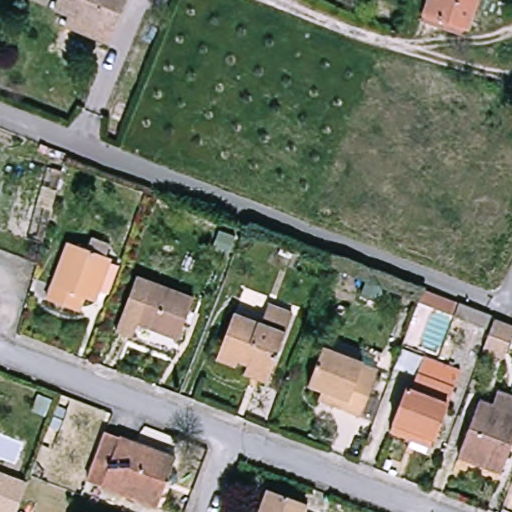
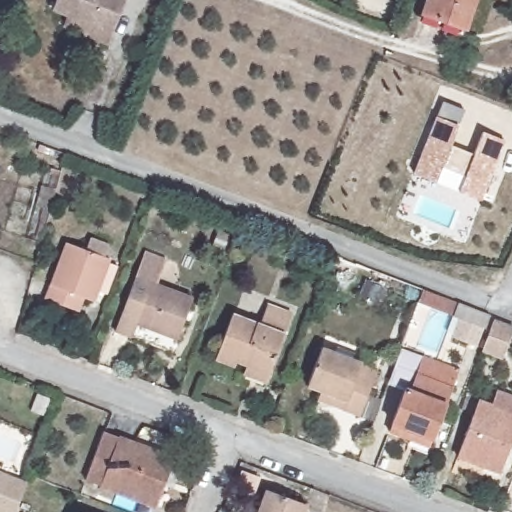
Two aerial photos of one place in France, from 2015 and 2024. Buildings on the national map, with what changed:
unchanged [(62,20),(47,14),(52,0),(121,0),(107,37),(102,50),(58,32),(62,20)]
unchanged [(415,15),(421,0),(472,0),(458,32),(415,15)]
new [(434,119),(455,127),(447,147),(470,156),(480,134),(501,142),(477,201),(455,193),(462,177),(439,167),(432,183),(411,175),(434,119)]
unchanged [(200,239),(206,222),(220,227),(213,245),(200,239)]
unchanged [(80,251),(86,239),(102,245),(97,260),(101,261),(83,303),(73,299),(68,311),(37,297),(60,243),(80,251)]
unchanged [(198,304),(182,342),(142,327),(136,341),(120,334),(143,281),(198,304)]
unchanged [(462,321),(464,315),(457,312),(454,320),(415,305),(420,290),(460,305),(489,317),(487,321),(509,328),(495,362),(475,355),(484,330),(462,321)]
unchanged [(237,355),(234,361),(216,353),(232,311),(259,320),(266,303),(291,312),(270,368),(266,376),(245,368),(248,360),(237,355)]
new [(477,344),(472,342),(463,365),(445,358),(457,329),(459,321),(482,330),(477,344)]
unchanged [(317,390),(304,385),(319,347),(374,368),(356,415),(327,404),(314,399),(317,390)]
unchanged [(407,395),(420,363),(451,375),(425,441),(387,426),(400,392),(407,395)]
unchanged [(482,468),(455,457),(477,400),(487,404),(492,390),(512,399),(512,432),(500,462),(495,473),(482,468)]
unchanged [(101,433),(117,439),(166,457),(173,460),(161,491),(155,508),(99,487),(83,481),(89,463),(101,433)]
unchanged [(19,512),(0,512),(0,471),(29,481),(19,512)]
unchanged [(264,490),(303,505),(319,512),(255,512),(264,490)]

